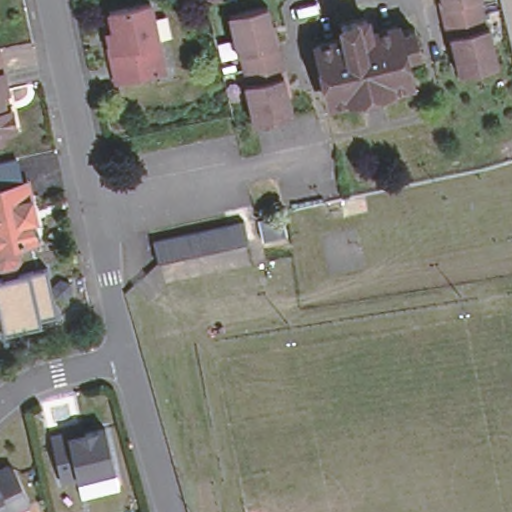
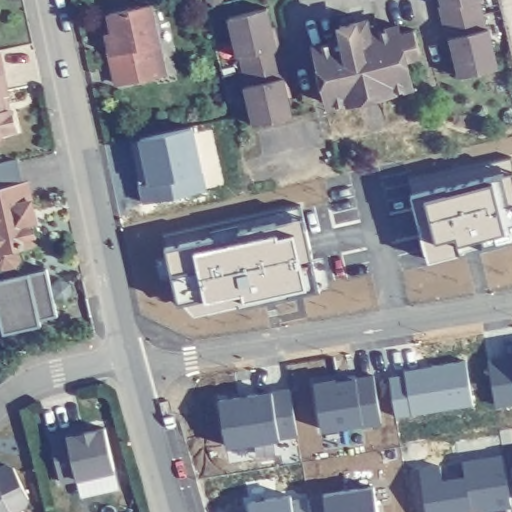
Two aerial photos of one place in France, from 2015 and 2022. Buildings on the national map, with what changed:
unchanged [(460,79),(456,61),(452,62),(446,40),(442,24),(438,7),(436,0),(480,0),(481,1),(477,1),(481,17),(484,31),(487,30),(496,71),(460,79)]
demolished [(512,54),(508,40),(504,25),(501,10),(498,0),(512,0),(512,56),(512,54)]
unchanged [(155,80),(118,87),(107,39),(113,37),(108,20),(149,10),(158,47),(166,77),(155,80)]
unchanged [(243,90),(247,90),(244,74),(241,60),(237,61),(228,21),(266,12),(272,32),(275,32),(279,49),(283,65),(288,82),(292,99),(289,100),(294,119),(253,129),(243,90)]
unchanged [(339,27),(366,21),(369,36),(397,29),(399,35),(416,31),(421,54),(411,56),(412,58),(407,59),(414,87),(384,94),(388,110),(365,115),(361,100),(329,105),(316,49),(342,42),(339,27)]
unchanged [(8,92),(12,108),(17,129),(0,133),(0,75),(4,74),(8,92)]
new [(191,131),(199,166),(139,184),(133,142),(191,131)]
demolished [(498,154),(512,150),(512,165),(502,168),(498,154)]
new [(509,177),(512,191),(512,238),(422,258),(408,196),(509,177)]
unchanged [(30,224),(34,244),(0,251),(0,190),(27,185),(35,222),(30,224)]
new [(304,217),(315,281),(176,311),(158,247),(304,217)]
demolished [(157,264),(153,244),(243,223),(246,237),(254,235),(256,243),(157,264)]
new [(55,319),(0,331),(0,284),(46,275),(55,319)]
new [(512,363),(512,405),(491,407),(487,365),(512,363)]
new [(464,364),(469,411),(392,420),(388,371),(464,364)]
new [(372,378),(376,427),(316,430),(312,386),(372,378)]
new [(291,393),(299,436),(277,435),(277,444),(219,451),(213,402),(291,393)]
unchanged [(60,483),(49,437),(66,433),(68,437),(104,430),(114,471),(60,483)]
unchanged [(0,470),(8,466),(14,468),(28,500),(25,507),(15,512),(0,512),(0,470)]
new [(512,466),(512,474),(511,466),(512,466)]
new [(503,471),(504,506),(468,511),(468,512),(421,512),(417,484),(503,471)]
new [(369,490),(372,512),(321,512),(320,497),(369,490)]
new [(304,497),(305,512),(246,512),(245,502),(304,497)]

